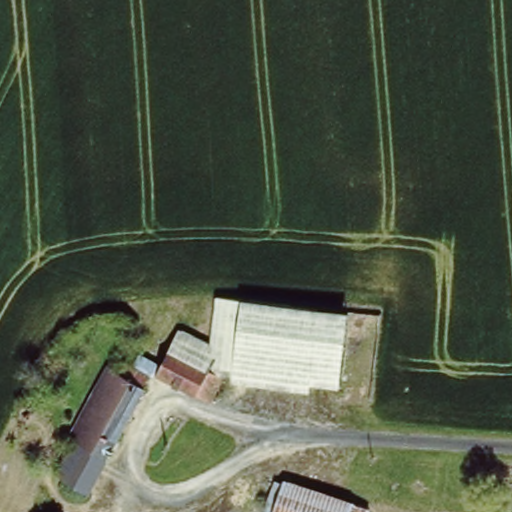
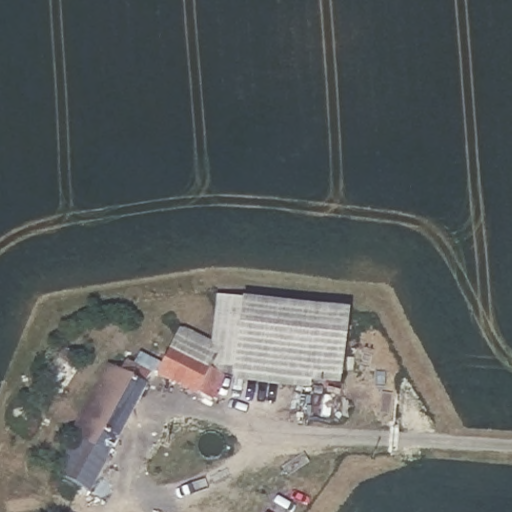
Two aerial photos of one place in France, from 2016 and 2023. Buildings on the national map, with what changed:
unchanged [(219,342),(222,305),(351,317),(344,387),(226,376),(216,375),(219,342)]
unchanged [(184,325),(219,342),(216,375),(226,376),(214,403),(161,377),(184,325)]
unchanged [(75,436),(110,363),(121,368),(125,359),(148,371),(144,378),(151,381),(115,456),(80,439),(75,436)]
unchanged [(80,439),(115,456),(95,496),(61,480),(80,439)]

